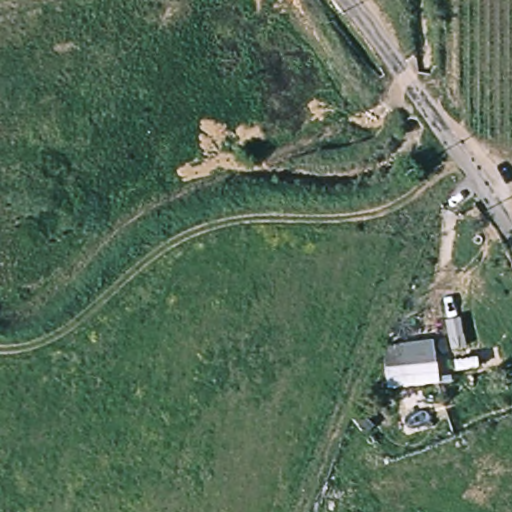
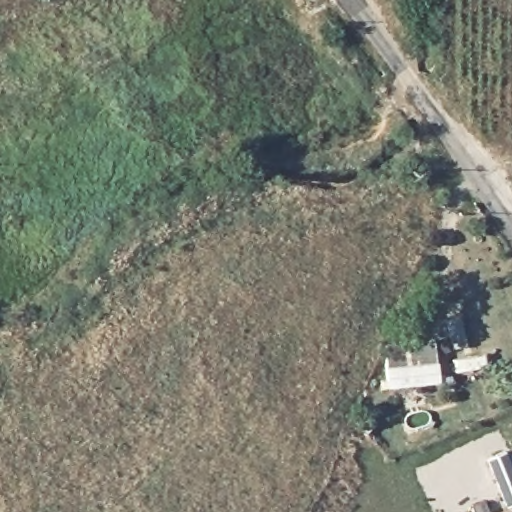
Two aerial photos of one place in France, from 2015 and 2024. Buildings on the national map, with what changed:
unchanged [(429,339),(433,381),(382,386),(379,343),(429,339)]
new [(512,505),(506,507),(486,460),(506,452),(512,467),(512,506),(512,505)]

